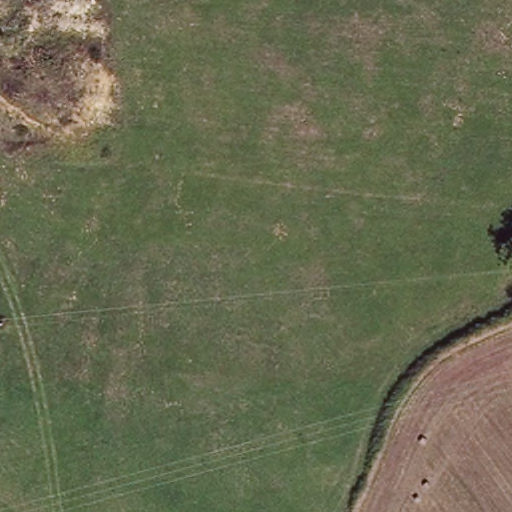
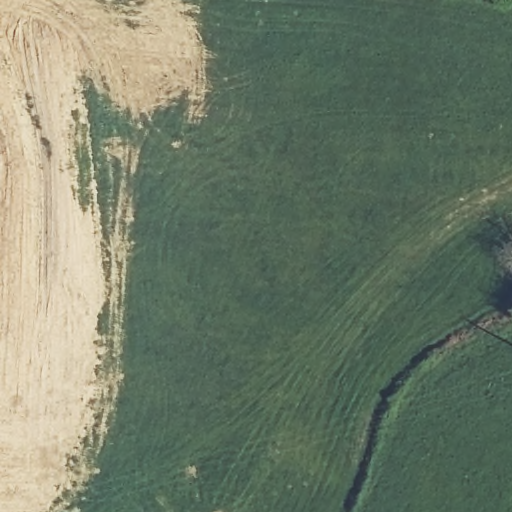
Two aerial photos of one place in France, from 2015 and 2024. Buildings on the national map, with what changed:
[]

